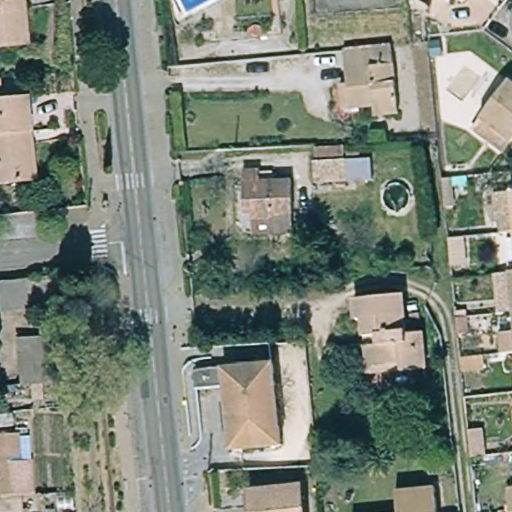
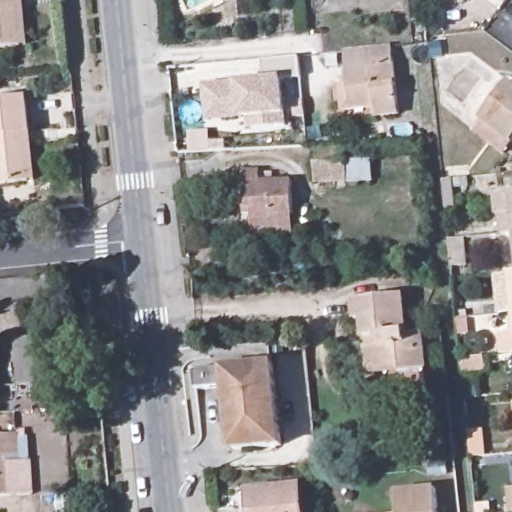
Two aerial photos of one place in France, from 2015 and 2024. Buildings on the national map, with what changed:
unchanged [(15,11),(19,46),(0,48),(0,0),(9,0),(10,11),(15,11)]
unchanged [(457,0),(465,0),(462,4),(457,0)]
unchanged [(363,108),(342,110),(340,84),(347,84),(345,51),(392,48),(398,113),(373,116),(363,117),(363,108)]
new [(302,80),(285,83),(286,113),(287,126),(252,130),(250,119),(207,121),(205,86),(236,81),(265,79),(262,61),(300,58),(302,80)]
unchanged [(512,76),(512,141),(481,119),(508,81),(512,76)]
unchanged [(2,94),(0,95),(0,85),(0,84),(2,94)]
unchanged [(27,100),(31,135),(18,136),(20,150),(27,150),(31,183),(0,187),(0,103),(27,100)]
unchanged [(345,160),(312,161),(311,144),(344,143),(345,160)]
unchanged [(375,159),(377,178),(318,186),(314,164),(375,159)]
unchanged [(293,215),(272,216),(273,223),(253,223),(252,210),(244,210),(242,170),(260,169),(260,181),(291,180),(293,215)]
unchanged [(500,218),(496,218),(495,198),(512,196),(512,236),(502,237),(500,218)]
unchanged [(512,277),(512,316),(508,277),(512,277)]
unchanged [(18,304),(15,284),(50,281),(52,301),(18,304)]
unchanged [(425,377),(402,376),(401,369),(373,369),(373,346),(366,346),(366,319),(360,318),(360,299),(409,299),(410,339),(425,339),(425,377)]
unchanged [(42,337),(43,386),(18,387),(16,338),(42,337)]
unchanged [(270,366),(277,447),(227,452),(221,390),(195,393),(193,373),(270,366)]
unchanged [(15,434),(16,458),(3,459),(3,463),(26,461),(30,496),(13,497),(0,498),(0,435),(15,434)]
unchanged [(302,512),(252,512),(250,492),(299,487),(302,512)]
unchanged [(397,489),(437,487),(439,512),(398,512),(397,489)]

